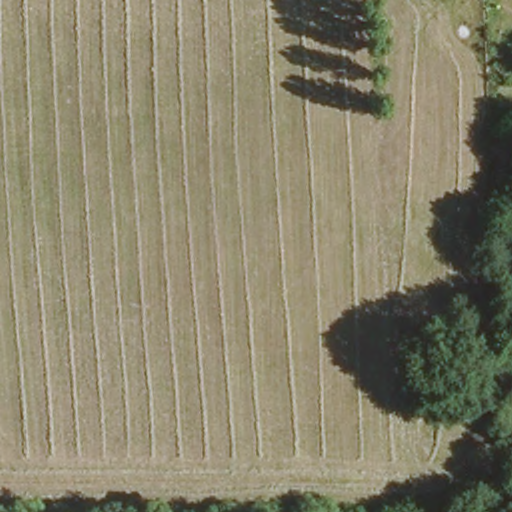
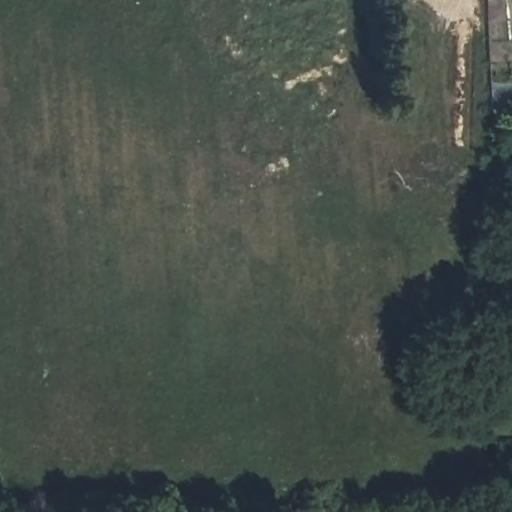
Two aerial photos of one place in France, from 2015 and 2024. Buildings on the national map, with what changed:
[]

